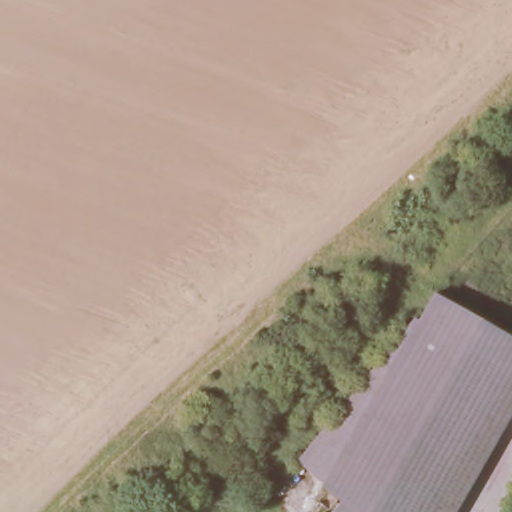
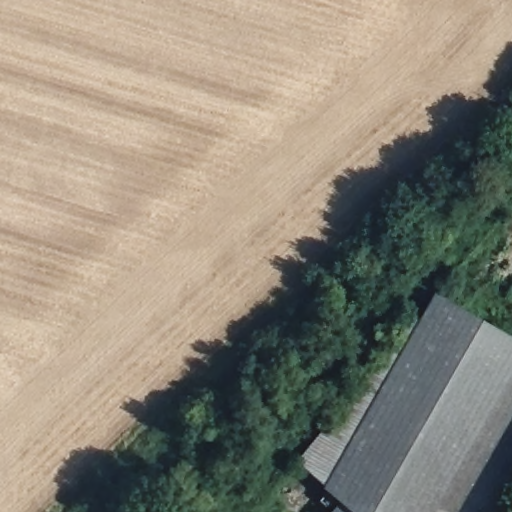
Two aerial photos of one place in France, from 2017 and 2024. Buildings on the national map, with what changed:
unchanged [(298,460),(412,320),(417,322),(436,294),(512,338),(512,420),(461,512),(332,512),(342,502),(298,460)]

